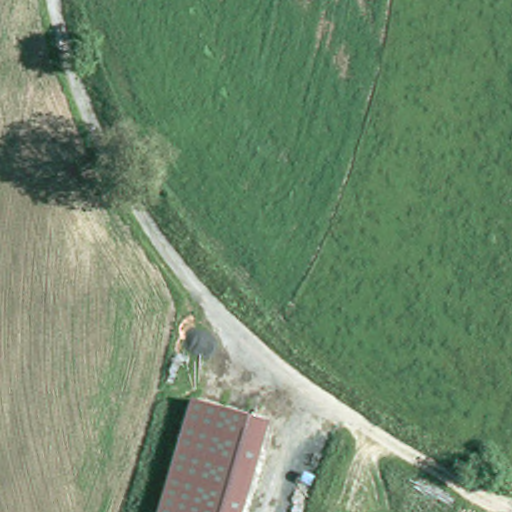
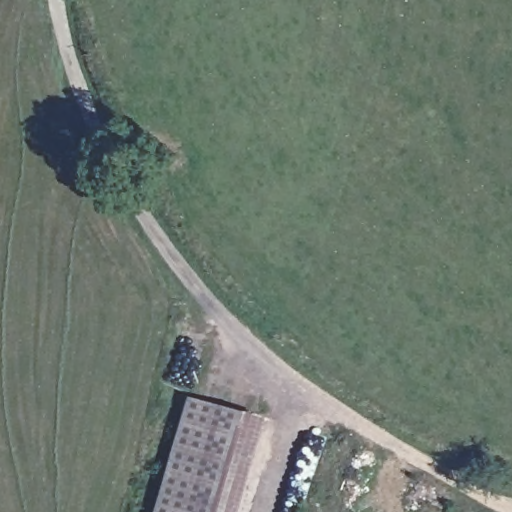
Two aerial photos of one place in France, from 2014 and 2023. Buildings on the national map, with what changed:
unchanged [(247,512),(159,512),(191,397),(271,421),(247,512)]

